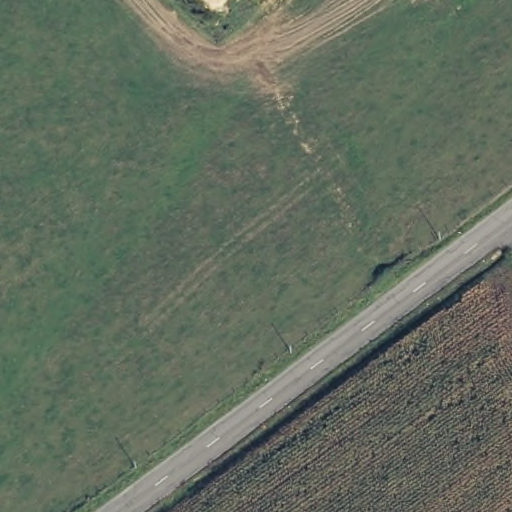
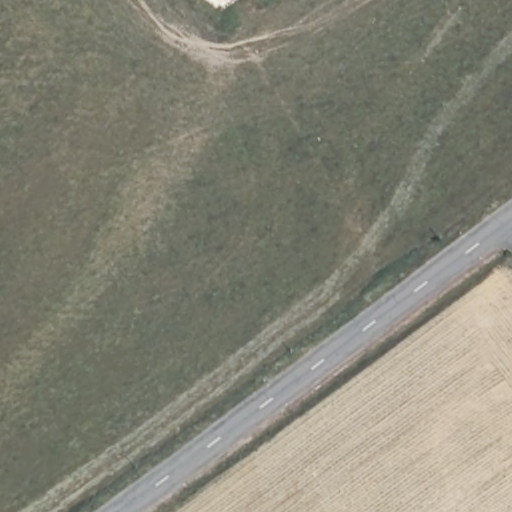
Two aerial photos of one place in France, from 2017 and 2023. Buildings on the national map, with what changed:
[]

